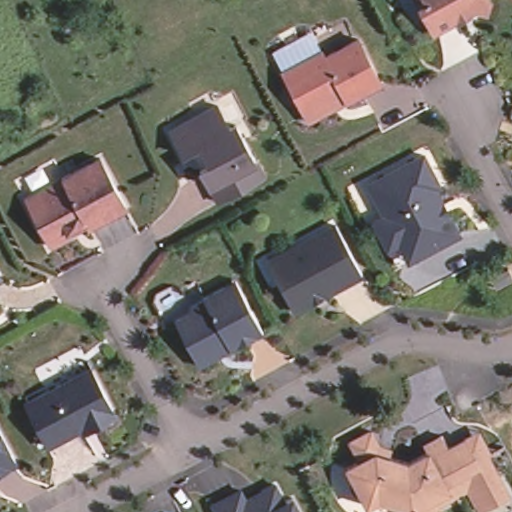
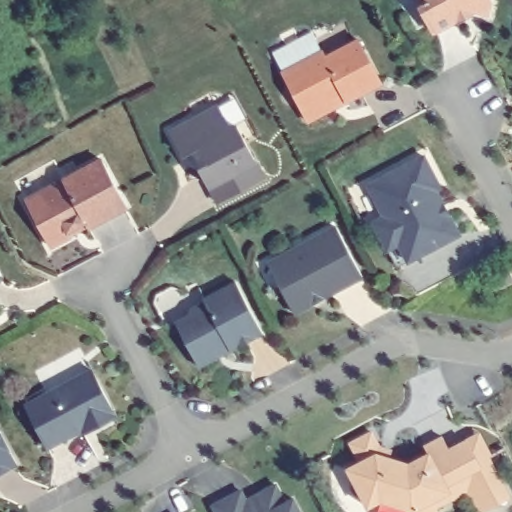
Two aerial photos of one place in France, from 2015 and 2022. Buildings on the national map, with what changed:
unchanged [(488,10),(477,7),(435,29),(420,3),(419,0),(492,0),(488,10)]
unchanged [(307,112),(285,70),(325,48),(328,55),(362,36),(385,79),(350,97),(310,119),(307,112)]
unchanged [(217,104),(229,125),(236,122),(263,175),(218,199),(200,165),(207,161),(198,144),(183,152),(172,128),(217,104)]
unchanged [(397,263),(374,218),(385,212),(369,181),(425,150),(442,181),(437,184),(445,199),(450,209),(460,230),(397,263)]
unchanged [(105,156),(130,204),(55,243),(30,195),(105,156)]
unchanged [(297,308),(275,268),(270,260),(289,249),(337,222),(365,271),(327,292),(317,297),(297,308)]
unchanged [(499,264),(505,275),(487,284),(482,273),(499,264)]
unchanged [(237,280),(263,330),(201,364),(177,320),(190,313),(193,306),(205,300),(206,296),(237,280)]
unchanged [(82,430),(48,447),(25,405),(91,370),(113,410),(112,420),(92,430),(85,433),(82,430)]
unchanged [(0,469),(0,428),(17,459),(0,469)]
unchanged [(472,489),(457,497),(438,507),(435,500),(417,510),(412,508),(392,502),(384,500),(372,507),(366,497),(363,498),(360,498),(359,498),(358,498),(358,497),(357,497),(355,496),(354,495),(352,493),(352,492),(351,490),(350,488),(350,487),(350,485),(352,483),(352,482),(352,481),(353,480),(355,478),(356,478),(351,467),(364,460),(354,442),(358,440),(375,431),(382,445),(380,452),(387,455),(412,462),(432,451),(428,445),(432,442),(446,435),(453,448),(468,440),(470,438),(479,453),(482,452),(488,455),(491,453),(512,493),(512,496),(491,507),(485,511),(472,489)]
unchanged [(242,490),(250,503),(261,497),(262,491),(277,483),(287,501),(295,496),(303,512),(218,512),(215,506),(242,490)]

